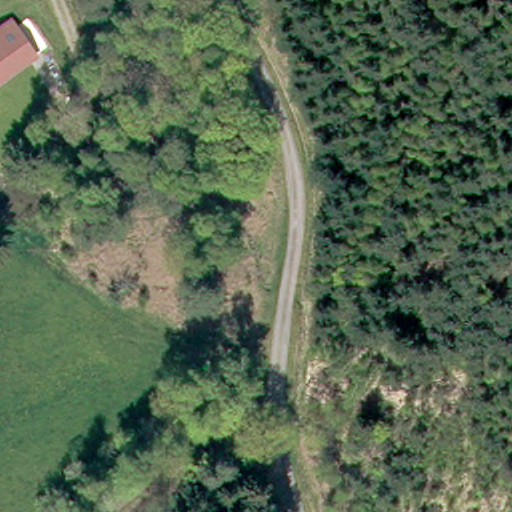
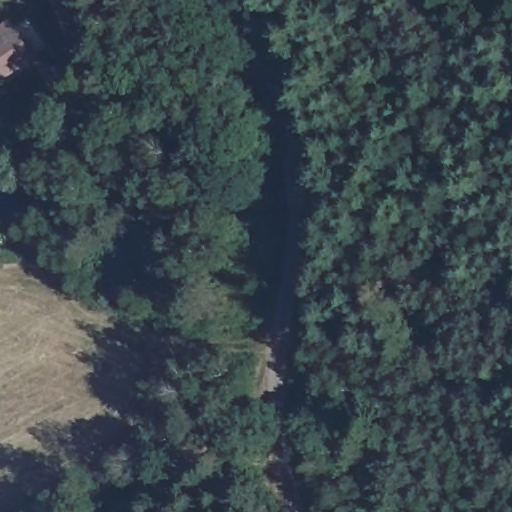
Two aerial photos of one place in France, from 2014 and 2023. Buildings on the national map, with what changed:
unchanged [(4,22),(10,33),(23,25),(38,52),(27,59),(0,75),(0,25),(4,22)]

